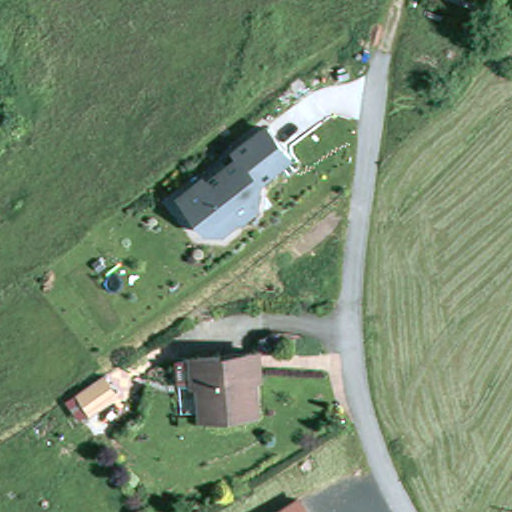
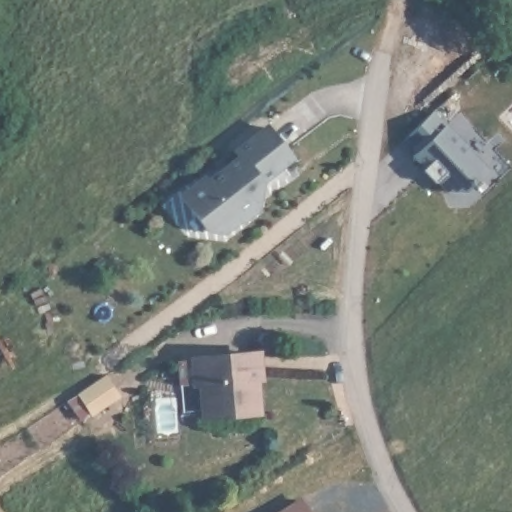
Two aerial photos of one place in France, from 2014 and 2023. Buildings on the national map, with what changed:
new [(447,124),(489,170),(463,190),(460,187),(455,191),(451,187),(447,191),(439,178),(434,182),(423,169),(412,156),(415,154),(402,138),(433,109),(447,124)]
unchanged [(202,181),(235,155),(230,149),(260,124),(286,157),(255,179),(253,206),(238,218),(236,215),(217,230),(203,229),(183,202),(205,186),(202,181)]
unchanged [(227,359),(228,372),(262,371),(263,414),(245,415),(245,422),(225,423),(224,418),(184,420),(182,362),(227,359)]
unchanged [(118,393),(91,411),(79,391),(107,374),(118,393)]
unchanged [(271,512),(298,495),(309,512),(271,512)]

